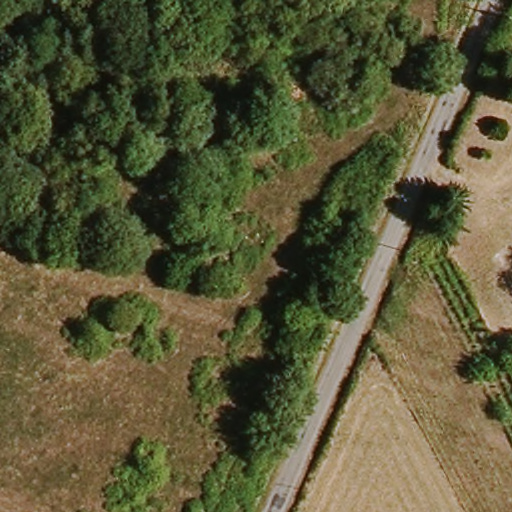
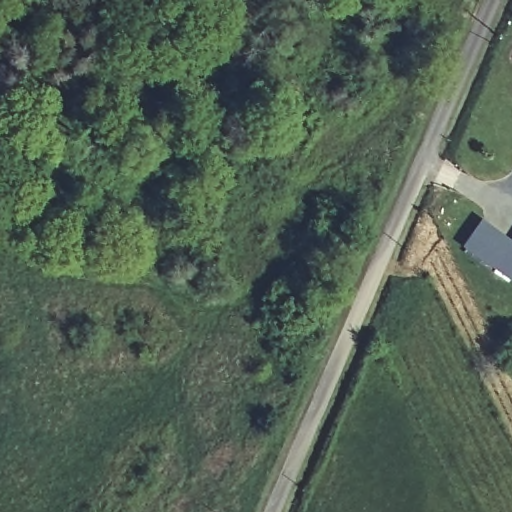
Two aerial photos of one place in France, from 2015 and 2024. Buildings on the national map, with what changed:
new [(512,283),(462,249),(483,220),(512,241),(512,282),(512,283)]

